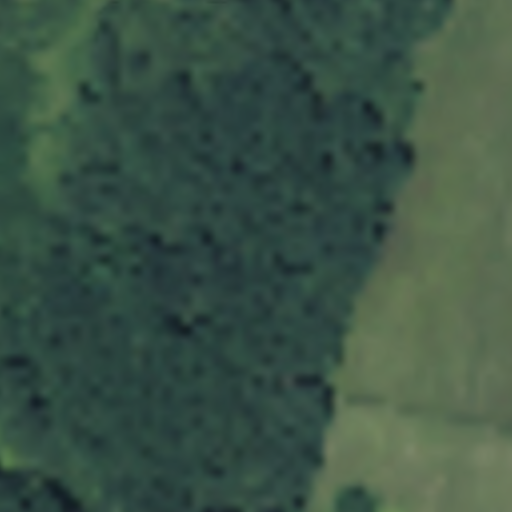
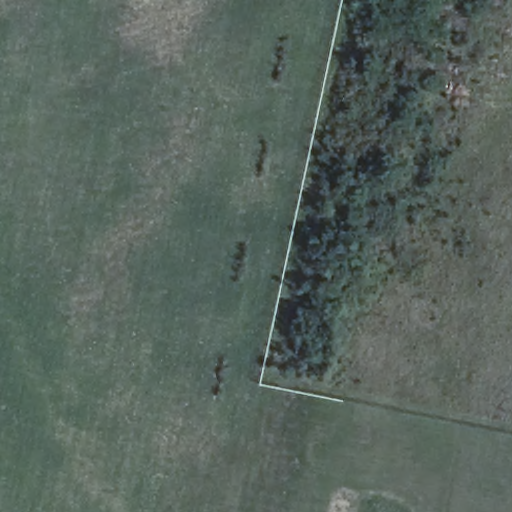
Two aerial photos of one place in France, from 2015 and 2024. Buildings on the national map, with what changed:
[]

